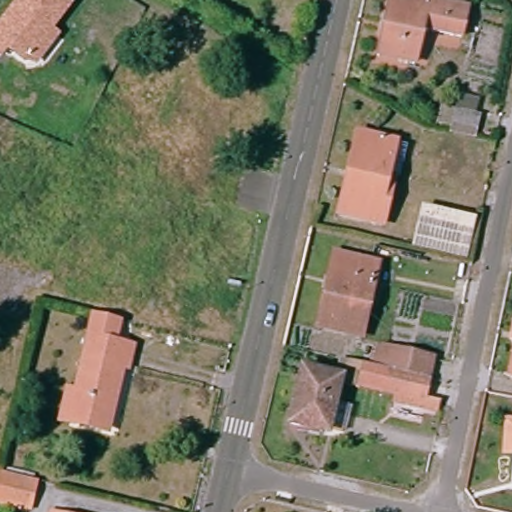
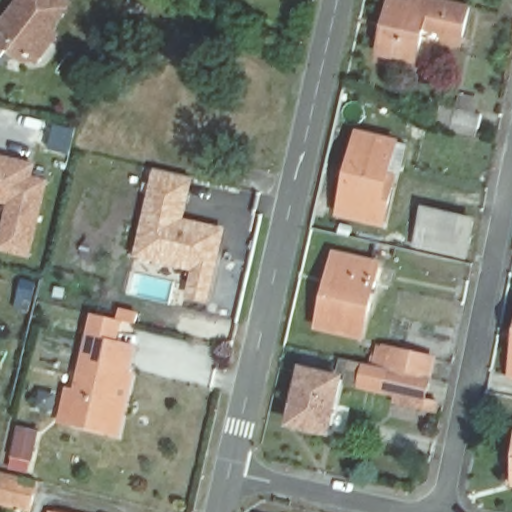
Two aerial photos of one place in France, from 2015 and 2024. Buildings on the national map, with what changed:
unchanged [(70,0),(74,3),(55,30),(61,35),(37,65),(24,65),(8,52),(1,60),(0,60),(0,20),(16,0),(70,0)]
unchanged [(421,28),(413,64),(375,56),(386,4),(406,7),(408,0),(441,0),(463,5),(457,35),(421,28)]
unchanged [(477,135),(445,129),(449,110),(480,116),(477,135)]
unchanged [(397,140),(387,186),(395,188),(387,225),(339,214),(357,131),(397,140)]
new [(36,162),(34,176),(48,180),(30,258),(0,251),(0,231),(7,202),(0,201),(0,153),(36,162)]
new [(155,168),(192,176),(184,218),(224,227),(207,300),(186,295),(192,270),(133,255),(155,168)]
unchanged [(463,260),(410,249),(422,204),(476,216),(463,260)]
unchanged [(336,254),(382,265),(366,338),(319,328),(336,254)]
unchanged [(81,395),(94,343),(100,318),(107,320),(124,325),(117,348),(132,352),(129,372),(120,370),(107,430),(74,423),(65,421),(72,393),(81,395)]
unchanged [(391,365),(377,362),(382,341),(433,352),(430,373),(391,365)]
unchanged [(512,344),(512,370),(507,370),(512,344)]
unchanged [(425,397),(386,390),(365,385),(369,361),(377,362),(391,365),(430,373),(425,397)]
unchanged [(326,432),(291,425),(302,372),(337,380),(326,432)]
unchanged [(508,414),(512,414),(512,463),(502,462),(508,414)]
new [(17,425),(39,431),(27,478),(6,472),(17,425)]
unchanged [(0,502),(0,471),(33,480),(26,508),(0,502)]

